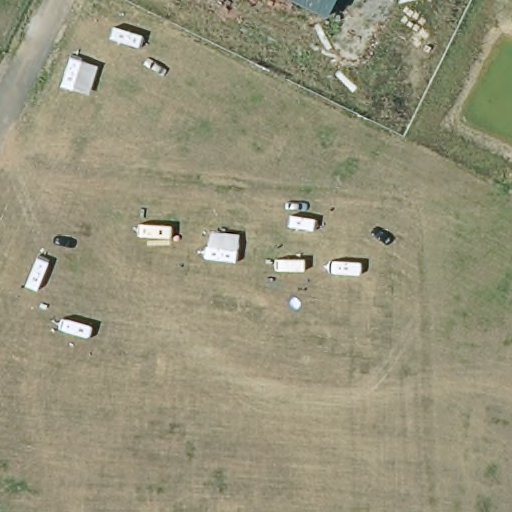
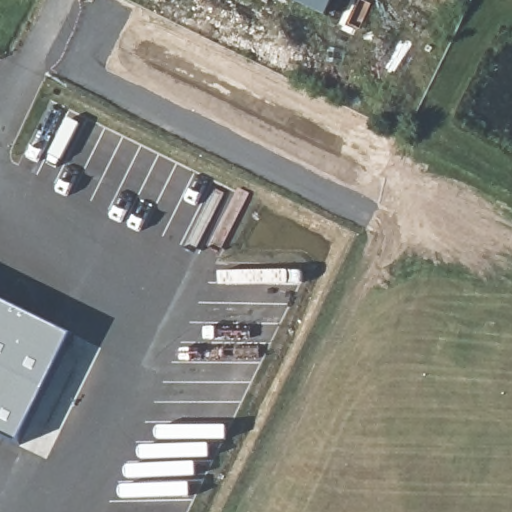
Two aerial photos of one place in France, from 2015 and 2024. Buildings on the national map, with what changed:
unchanged [(324,21),(280,0),(333,0),(324,21)]
new [(72,337),(20,442),(0,433),(0,302),(72,337)]

